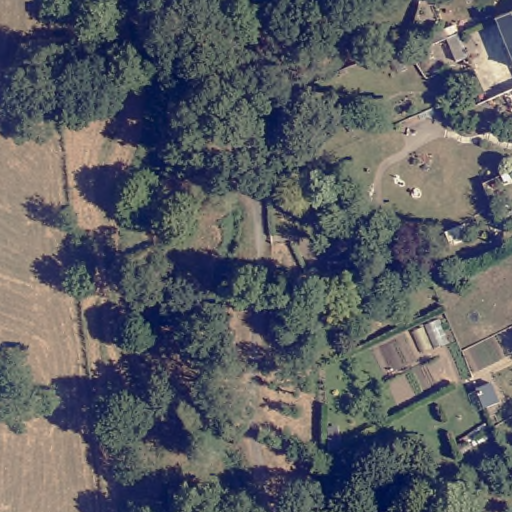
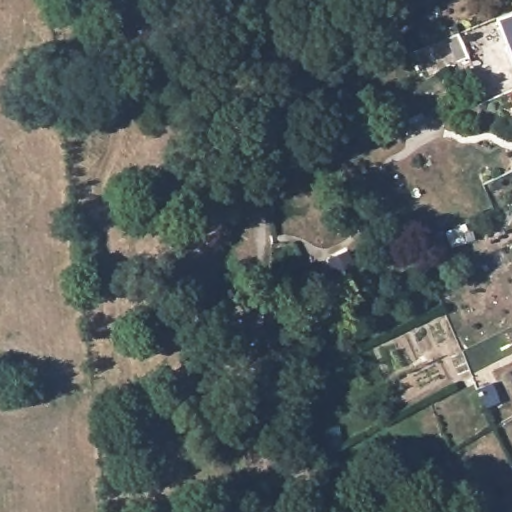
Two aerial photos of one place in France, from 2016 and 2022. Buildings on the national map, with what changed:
unchanged [(494,25),(512,18),(512,69),(494,25)]
unchanged [(421,37),(439,30),(444,39),(425,45),(421,37)]
unchanged [(348,253),(354,266),(333,275),(327,261),(348,253)]
unchanged [(482,367),(490,383),(476,390),(472,379),(469,372),(482,367)]

